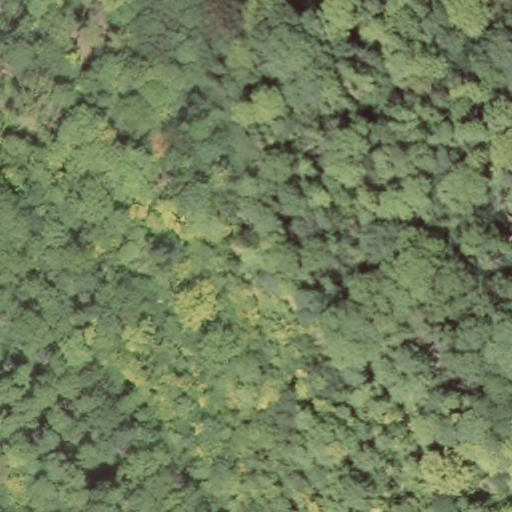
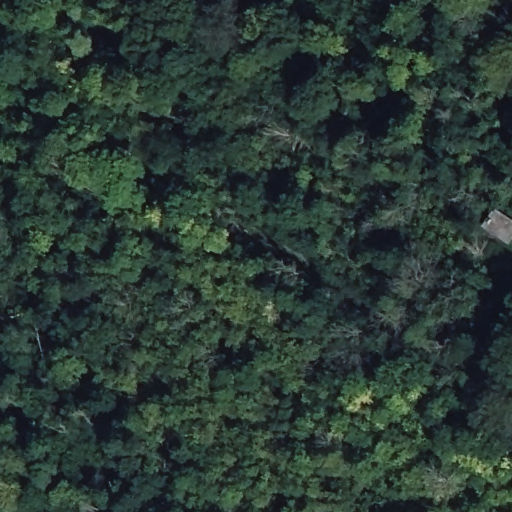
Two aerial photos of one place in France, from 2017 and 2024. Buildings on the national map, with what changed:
unchanged [(512,219),(512,243),(511,245),(485,222),(499,207),(512,219)]

